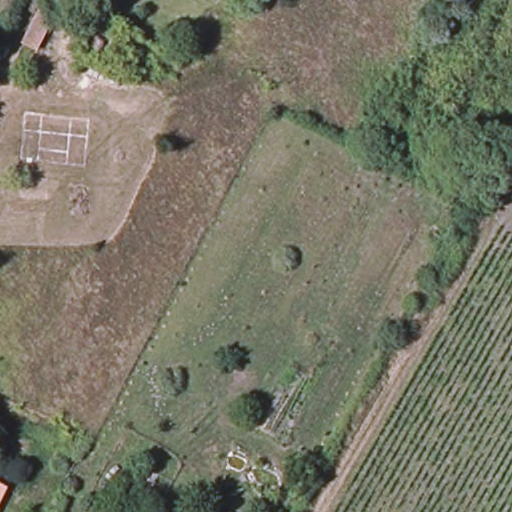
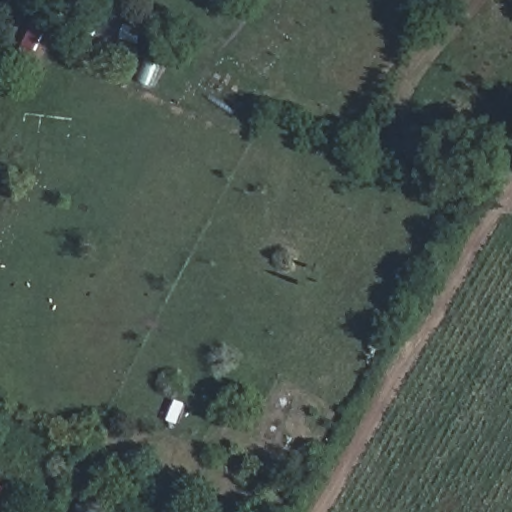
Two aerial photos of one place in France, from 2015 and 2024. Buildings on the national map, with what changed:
unchanged [(19,51),(36,18),(51,26),(35,58),(19,51)]
unchanged [(2,494),(0,502),(0,493),(2,494)]

